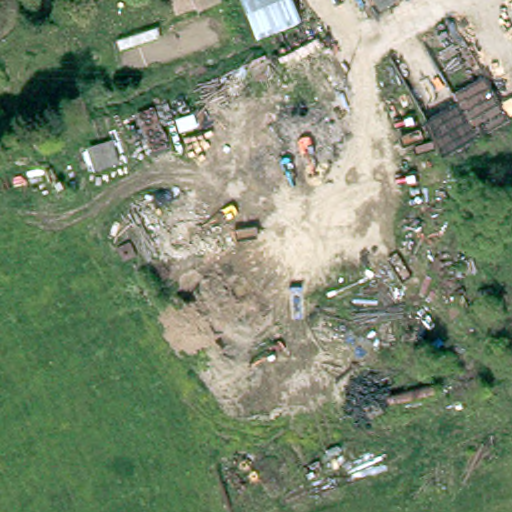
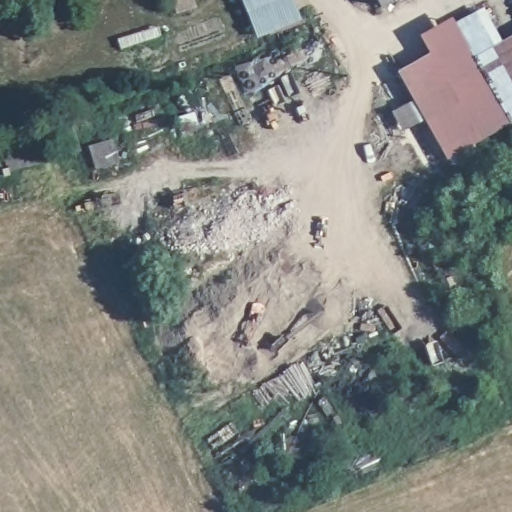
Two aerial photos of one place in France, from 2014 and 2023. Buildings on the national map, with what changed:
new [(257,39),(241,0),(293,0),(302,21),(257,39)]
unchanged [(383,3),(381,0),(388,0),(383,3)]
new [(452,18),(454,21),(480,6),(501,39),(512,34),(512,122),(449,157),(425,122),(457,104),(430,55),(423,34),(452,18)]
new [(430,55),(457,104),(425,122),(398,74),(430,55)]

